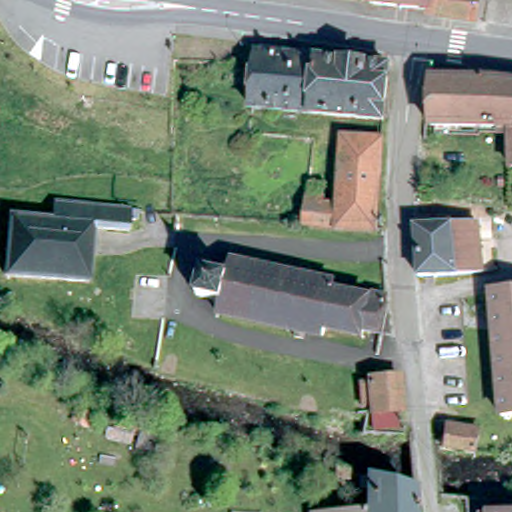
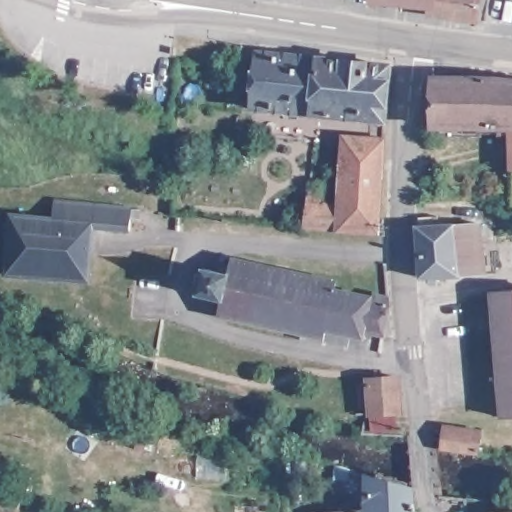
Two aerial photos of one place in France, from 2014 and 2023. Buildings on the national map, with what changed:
unchanged [(480,35),(432,26),(432,19),(375,14),(375,0),(470,0),(483,1),(480,35)]
unchanged [(386,122),(240,110),(245,54),(390,69),(386,122)]
unchanged [(431,130),(432,82),(512,86),(512,132),(431,130)]
unchanged [(337,201),(345,145),(387,147),(379,242),(305,235),(307,198),(337,201)]
unchanged [(512,146),(512,167),(510,167),(512,146)]
unchanged [(8,219),(52,221),(55,204),(131,214),(149,216),(147,232),(130,231),(94,227),(91,257),(87,290),(5,279),(8,219)]
unchanged [(457,280),(421,283),(415,233),(417,222),(438,222),(439,232),(486,230),(485,278),(457,280)]
unchanged [(384,330),(362,325),(360,331),(323,324),(321,332),(216,311),(220,295),(197,290),(202,265),(225,270),(228,258),(333,280),(332,290),(368,296),(367,300),(387,305),(384,330)]
unchanged [(498,415),(493,293),(512,292),(512,414),(498,415)]
unchanged [(364,421),(360,393),(360,389),(370,387),(400,382),(407,423),(403,424),(405,436),(380,438),(375,426),(373,420),(364,421)]
unchanged [(447,453),(451,427),(484,430),(483,456),(447,453)]
unchanged [(507,459),(508,443),(512,443),(512,458),(507,459)]
unchanged [(367,473),(388,480),(410,486),(412,512),(364,512),(367,473)]

